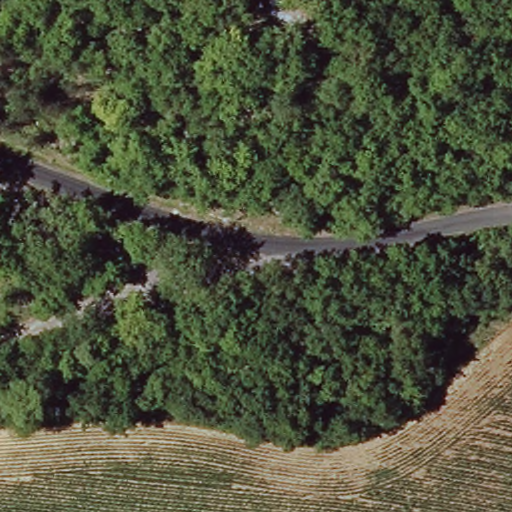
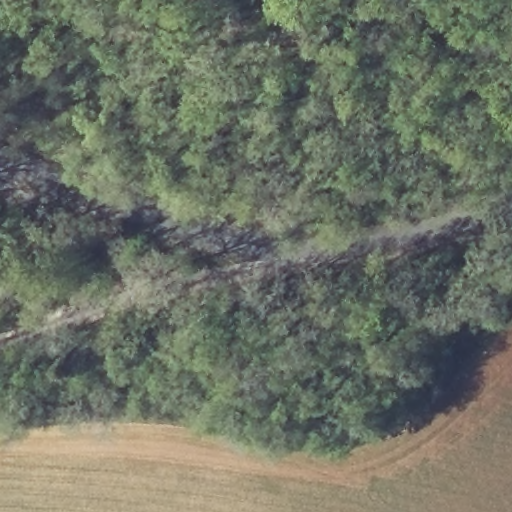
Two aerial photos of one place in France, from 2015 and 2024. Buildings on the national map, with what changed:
unchanged [(284,0),(289,6),(270,25),(254,6),(261,0),(284,0)]

